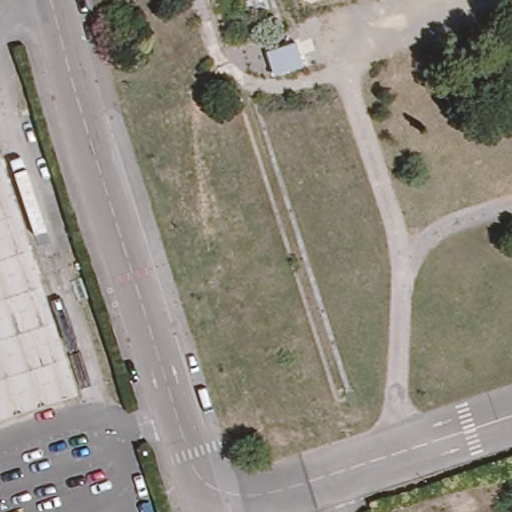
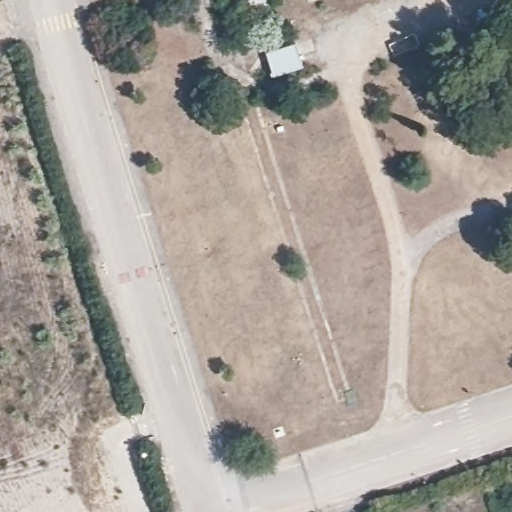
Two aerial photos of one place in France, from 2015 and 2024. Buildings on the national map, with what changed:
demolished [(0,140),(82,393),(0,420),(0,140)]

